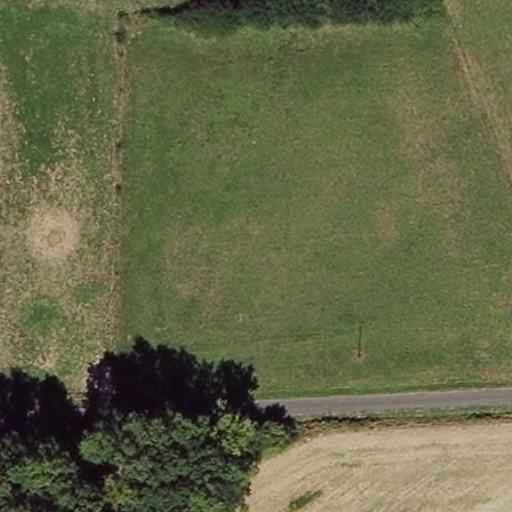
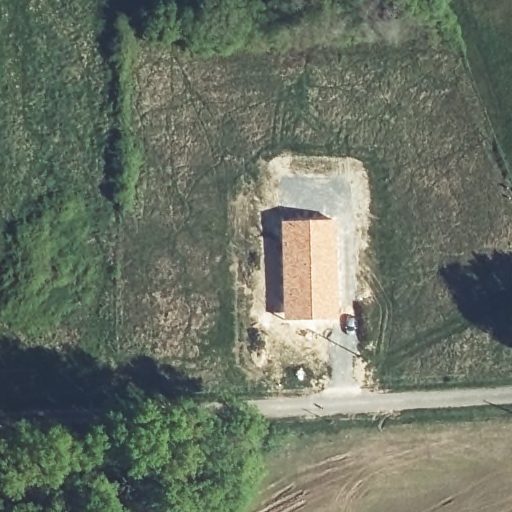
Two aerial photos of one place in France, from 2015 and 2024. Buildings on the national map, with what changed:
new [(338,219),(341,292),(340,320),(283,321),(280,220),(338,219)]

